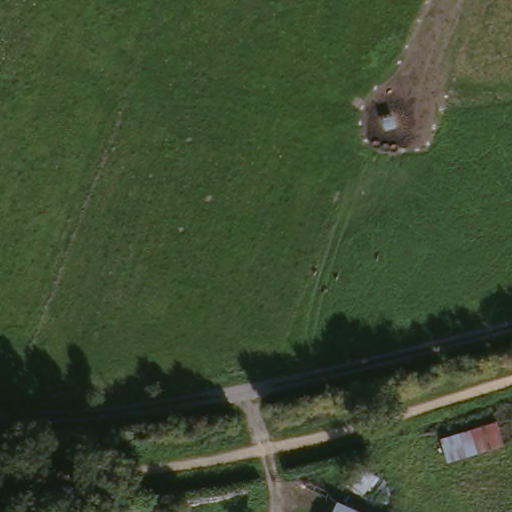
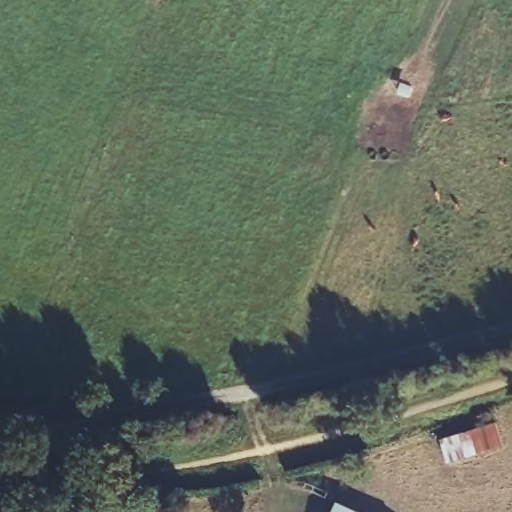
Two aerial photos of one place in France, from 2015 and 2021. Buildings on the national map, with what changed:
unchanged [(499,423),(508,448),(475,458),(445,467),(438,442),(468,433),(499,423)]
unchanged [(333,507),(344,512),(331,512),(333,507)]

